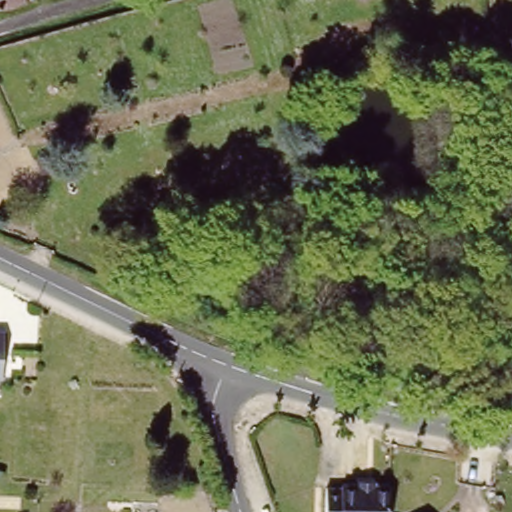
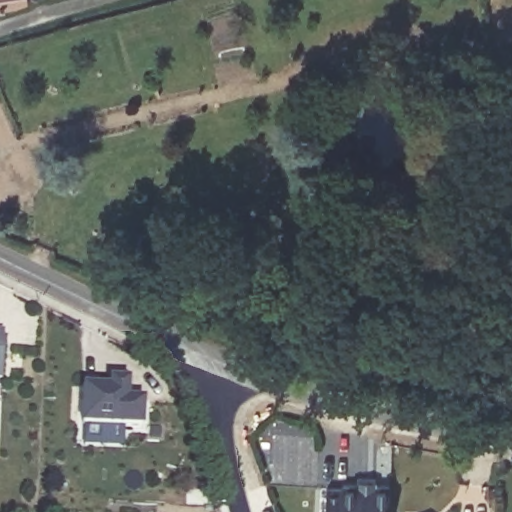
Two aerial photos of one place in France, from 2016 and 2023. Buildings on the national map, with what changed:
unchanged [(0,3),(0,0),(17,0),(15,1),(0,3)]
new [(143,428),(82,424),(83,385),(110,387),(110,378),(130,379),(129,399),(144,399),(143,428)]
unchanged [(382,512),(322,512),(323,486),(338,486),(338,482),(383,483),(382,512)]

